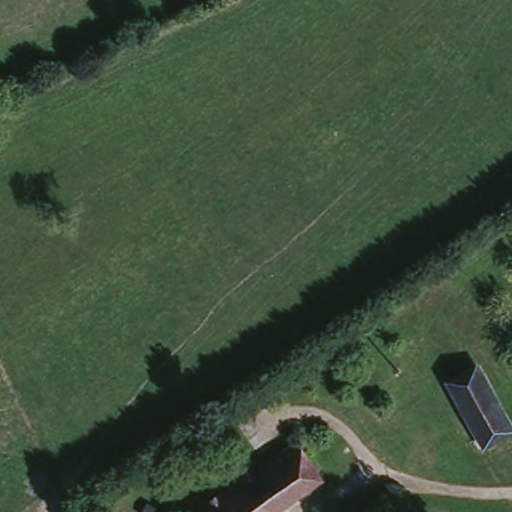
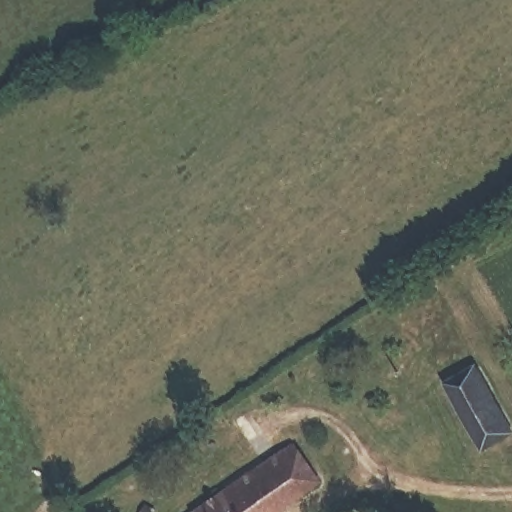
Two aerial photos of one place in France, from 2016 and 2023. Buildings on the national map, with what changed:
unchanged [(512,427),(512,435),(483,451),(446,385),(479,366),(512,427)]
unchanged [(304,445),(327,484),(279,512),(191,512),(191,511),(304,445)]

